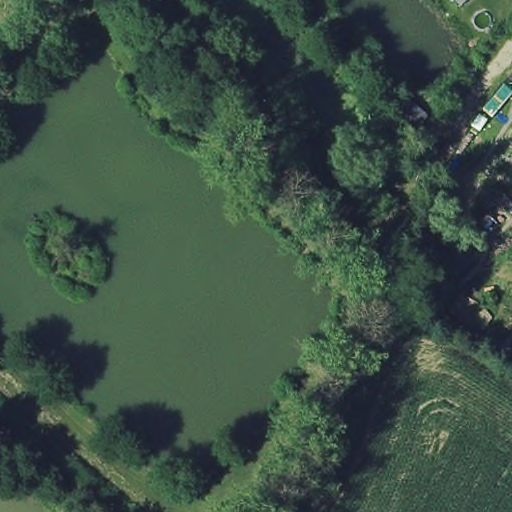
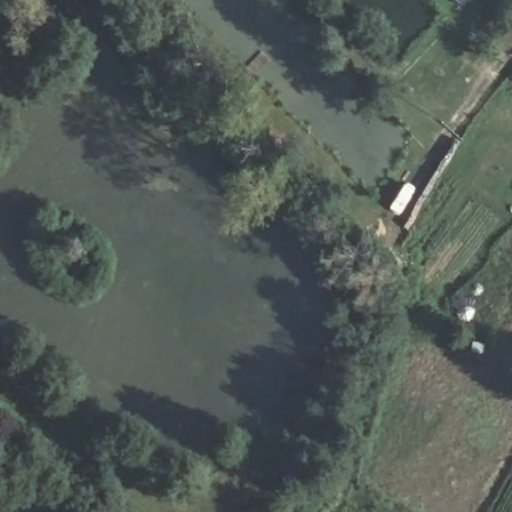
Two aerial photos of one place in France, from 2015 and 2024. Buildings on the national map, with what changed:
unchanged [(461,1),(459,0),(463,0),(461,2),(461,1)]
unchanged [(261,99),(252,108),(237,95),(246,85),(261,99)]

